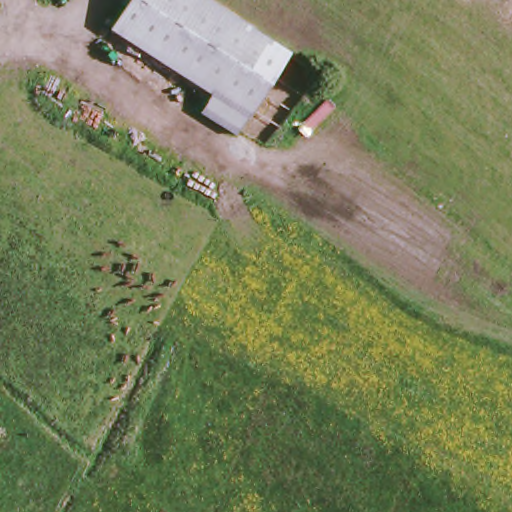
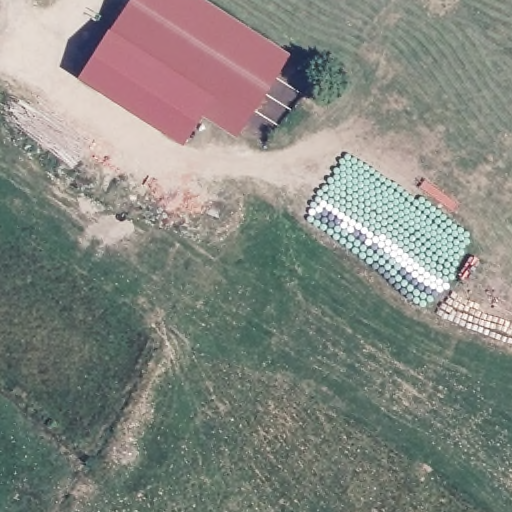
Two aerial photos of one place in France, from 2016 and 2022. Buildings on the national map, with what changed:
unchanged [(196,115),(207,98),(109,34),(131,0),(202,0),(283,52),(229,136),(196,115)]
new [(79,75),(109,34),(207,98),(196,115),(202,119),(183,143),(79,75)]

